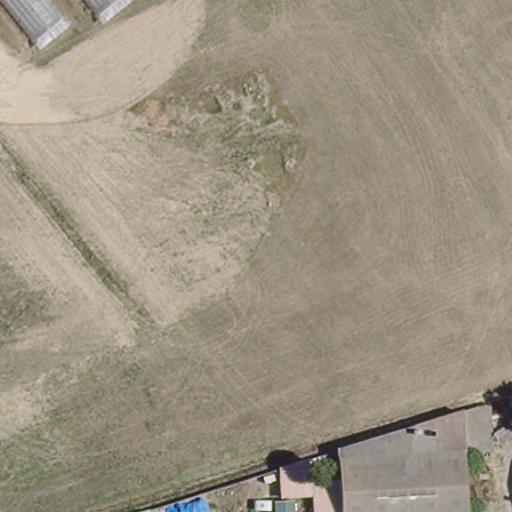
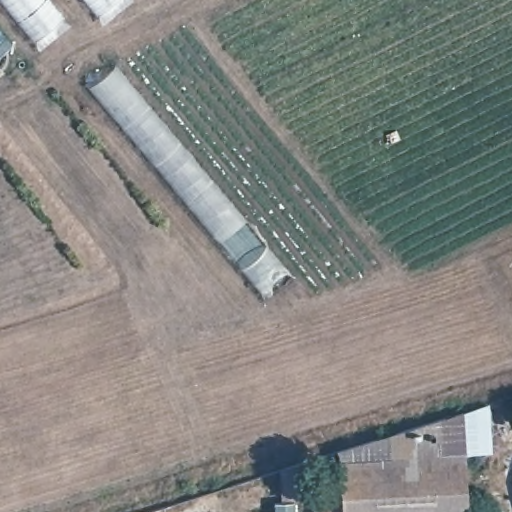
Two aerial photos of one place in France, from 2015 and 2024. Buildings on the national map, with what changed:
unchanged [(31,48),(0,10),(0,0),(41,0),(61,24),(31,48)]
unchanged [(99,20),(82,0),(123,0),(99,20)]
new [(13,45),(0,54),(0,29),(13,45)]
new [(290,275),(264,295),(89,86),(115,65),(290,275)]
new [(0,213),(0,191),(9,209),(0,213)]
unchanged [(342,450),(460,412),(465,455),(342,461),(342,450)]
unchanged [(345,512),(342,461),(465,455),(469,512),(345,512)]
new [(294,512),(273,512),(273,500),(294,500),(294,512)]

